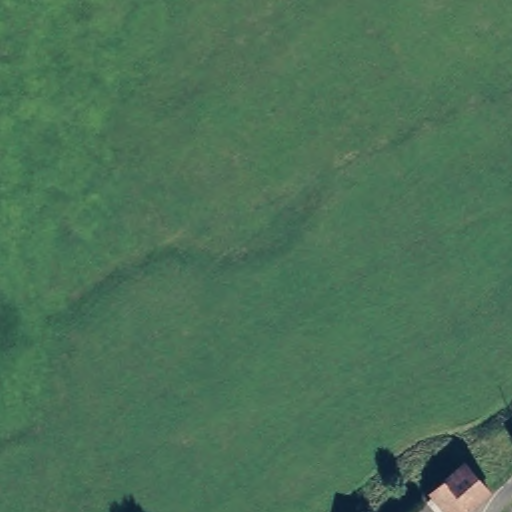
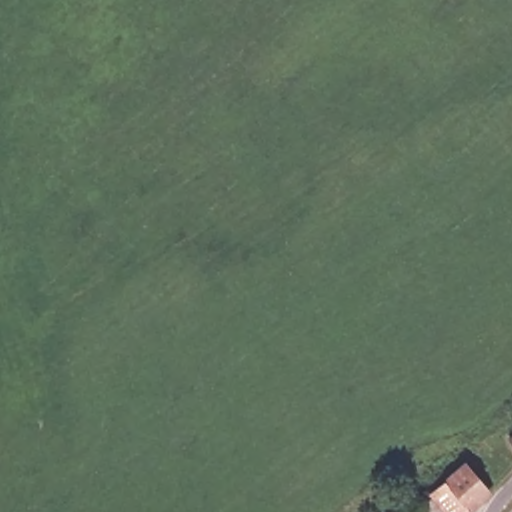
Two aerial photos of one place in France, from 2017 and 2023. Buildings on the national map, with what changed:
unchanged [(488,492),(463,512),(448,512),(432,493),(466,465),(488,492)]

